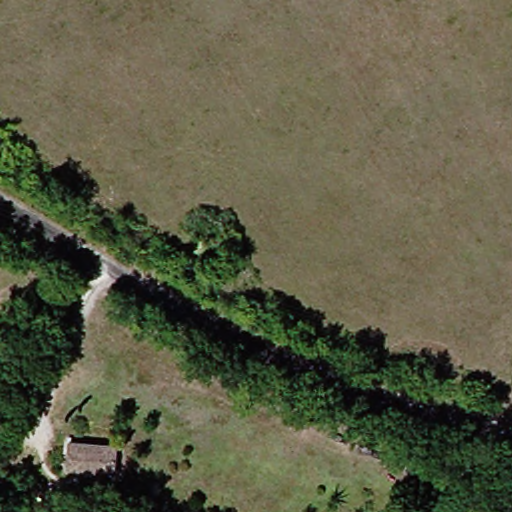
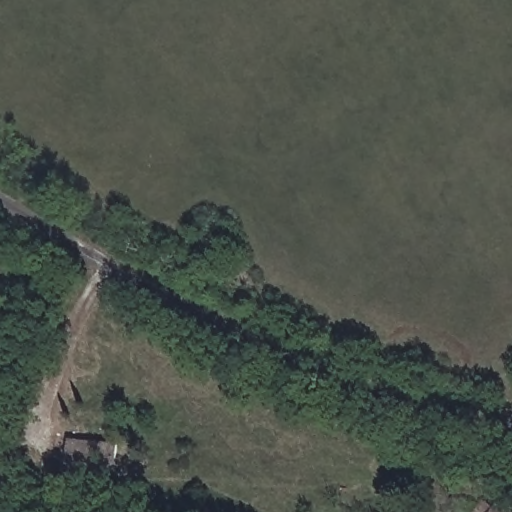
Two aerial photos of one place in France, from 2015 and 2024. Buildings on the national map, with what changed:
unchanged [(58,466),(59,445),(107,445),(107,473),(77,473),(59,473),(58,466)]
unchanged [(477,512),(467,512),(470,507),(477,512)]
unchanged [(491,512),(489,512),(490,511),(491,512)]

